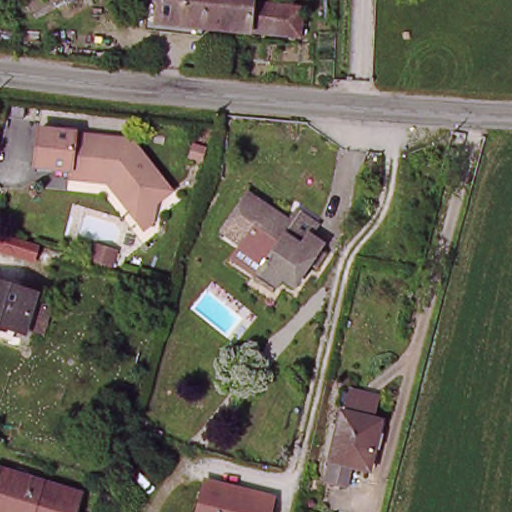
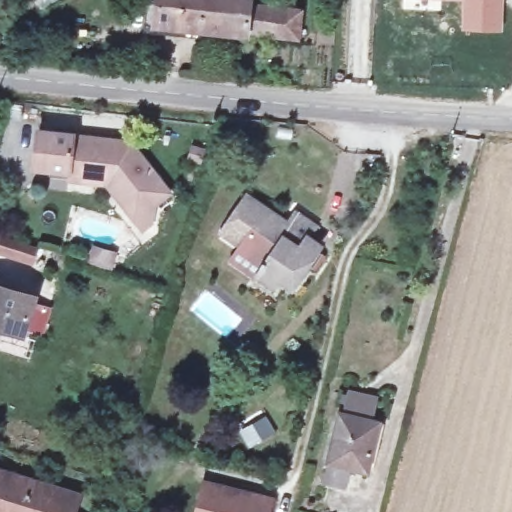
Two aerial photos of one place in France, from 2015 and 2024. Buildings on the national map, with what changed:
unchanged [(310,10),(307,44),(144,24),(148,0),(281,0),(281,7),(310,10)]
new [(441,0),(441,10),(400,9),(401,0),(441,0)]
new [(460,29),(462,0),(504,0),(502,31),(460,29)]
unchanged [(39,134),(127,144),(170,193),(149,213),(127,210),(117,199),(120,196),(112,186),(67,183),(67,174),(34,170),(39,134)]
unchanged [(282,239),(295,220),(314,236),(303,251),(324,265),(314,280),(307,278),(290,299),(278,288),(270,299),(251,284),(263,267),(240,244),(235,248),(217,232),(239,204),(282,239)]
unchanged [(34,261),(0,251),(0,233),(0,229),(40,240),(34,261)]
unchanged [(22,324),(20,333),(0,327),(0,287),(30,294),(28,300),(50,306),(45,330),(22,324)]
unchanged [(340,407),(367,414),(361,439),(364,439),(352,493),(317,483),(330,431),(334,432),(340,407)]
unchanged [(57,512),(19,512),(0,507),(0,460),(67,479),(57,512)]
unchanged [(277,496),(273,512),(197,512),(205,479),(277,496)]

